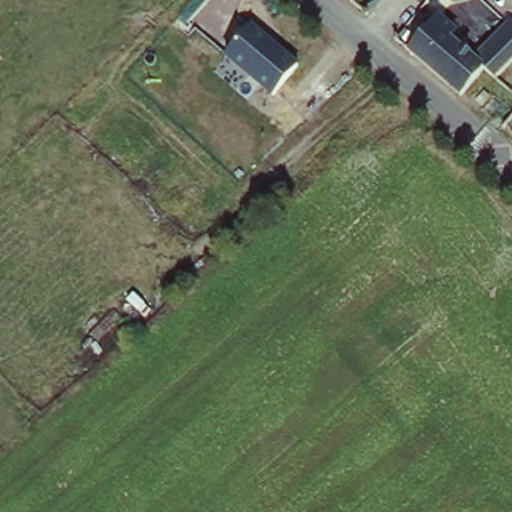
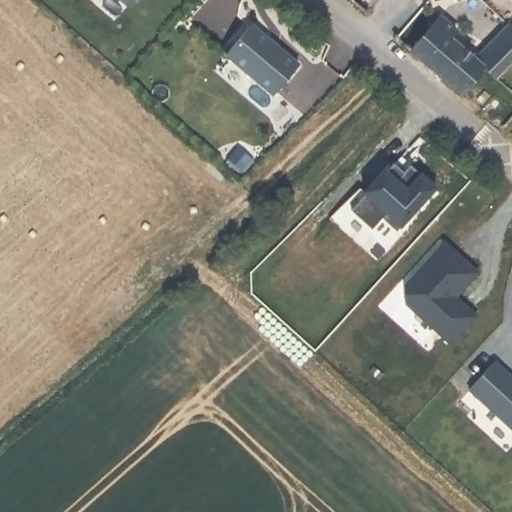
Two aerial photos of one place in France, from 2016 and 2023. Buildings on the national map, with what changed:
new [(119,0),(133,0),(127,7),(119,0)]
unchanged [(382,0),(368,16),(349,2),(350,0),(382,0)]
unchanged [(457,37),(455,40),(480,61),(512,27),(512,70),(501,81),(490,72),(464,101),(407,57),(438,21),(457,37)]
unchanged [(271,97),(224,56),(250,25),(299,66),(271,97)]
new [(384,171),(396,182),(410,166),(435,189),(396,232),(382,219),(387,214),(364,193),(384,171)]
new [(477,317),(451,346),(405,303),(404,287),(444,242),(478,273),(456,297),(464,305),(477,317)]
new [(512,379),(512,430),(469,390),(494,362),(512,379)]

